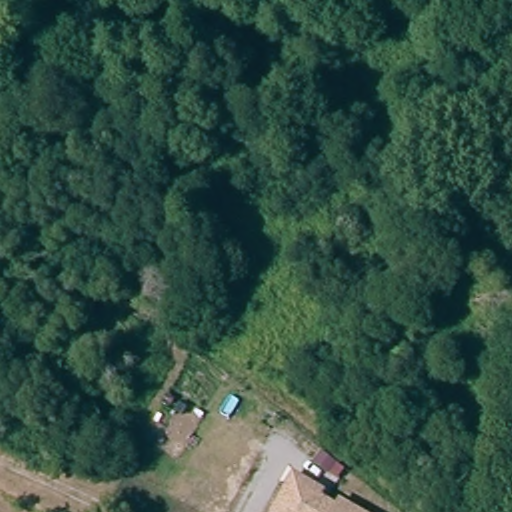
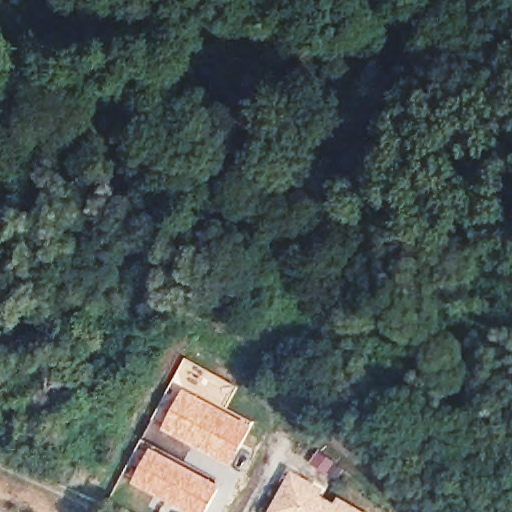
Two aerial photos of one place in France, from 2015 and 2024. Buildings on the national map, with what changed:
new [(182,385),(255,422),(232,466),(160,427),(182,385)]
new [(221,485),(205,512),(186,512),(130,480),(151,446),(221,485)]
unchanged [(317,498),(326,503),(321,512),(268,512),(282,486),(286,480),(288,474),(301,481),(306,484),(320,492),(317,498)]
unchanged [(336,508),(340,502),(357,512),(321,512),(326,503),(336,508)]

